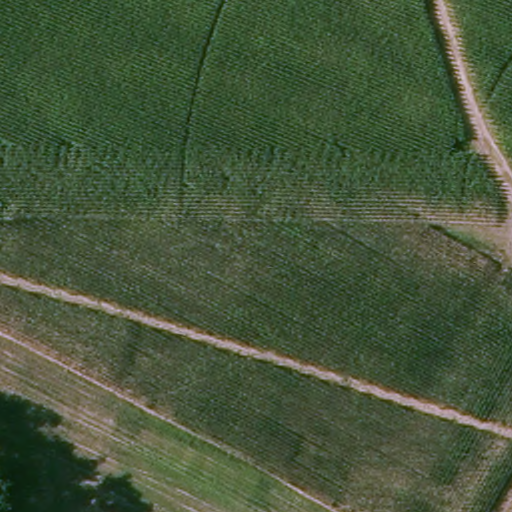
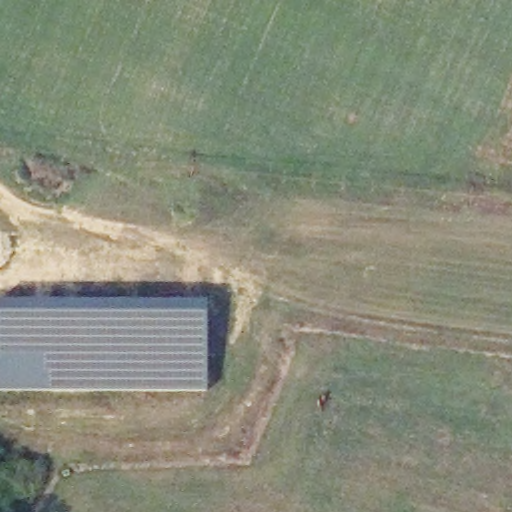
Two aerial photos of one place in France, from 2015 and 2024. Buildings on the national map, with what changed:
new [(207,301),(207,391),(0,391),(0,301),(207,301)]

